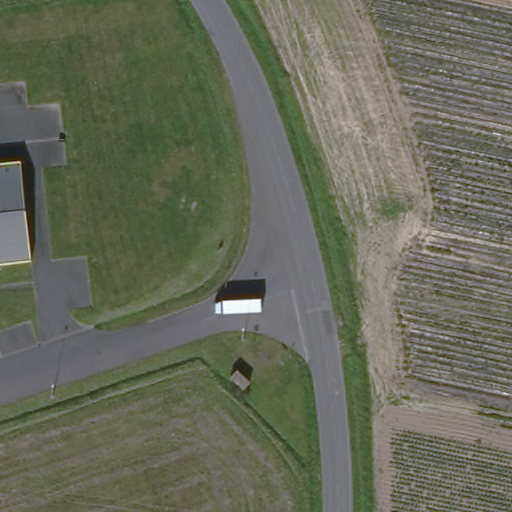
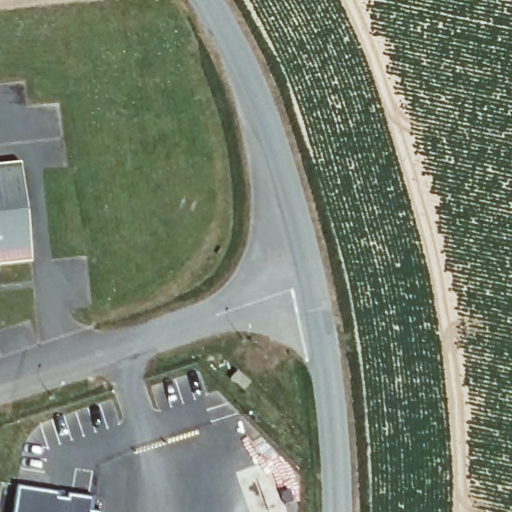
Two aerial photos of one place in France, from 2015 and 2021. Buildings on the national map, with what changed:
unchanged [(25,159),(33,257),(0,261),(0,161),(25,159)]
new [(58,497),(58,502),(65,503),(66,499),(93,503),(91,512),(12,512),(16,490),(58,497)]

